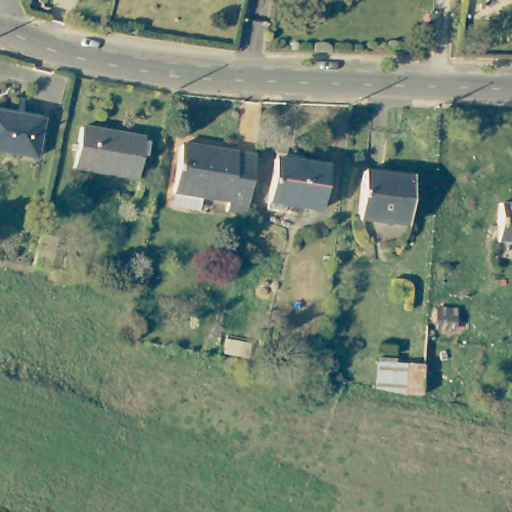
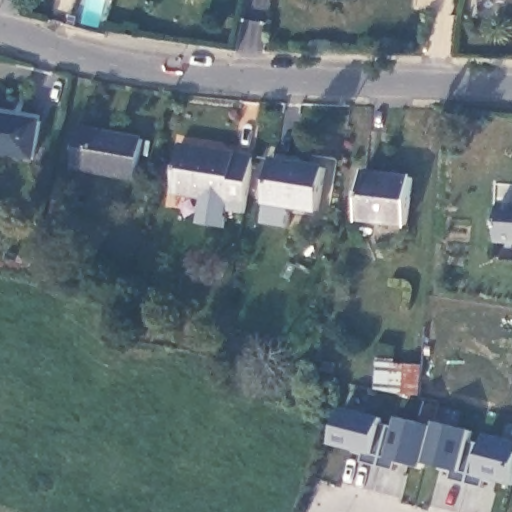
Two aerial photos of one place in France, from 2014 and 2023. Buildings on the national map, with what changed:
unchanged [(508,1),(503,5),(479,1),(479,0),(512,0),(512,2),(508,1)]
unchanged [(31,157),(0,150),(0,110),(39,119),(31,157)]
unchanged [(141,138),(134,179),(74,168),(81,126),(141,138)]
unchanged [(245,213),(225,211),(226,203),(171,195),(179,147),(252,160),(245,213)]
unchanged [(270,202),(277,156),(328,164),(320,209),(270,202)]
unchanged [(364,173),(413,178),(407,224),(358,218),(364,173)]
unchanged [(512,200),(512,240),(496,240),(498,200),(512,200)]
unchanged [(40,277),(46,247),(64,250),(62,269),(86,273),(85,287),(40,277)]
unchanged [(231,349),(255,353),(252,370),(229,366),(231,349)]
unchanged [(424,369),(425,403),(376,393),(378,362),(424,369)]
demolished [(432,413),(433,381),(450,384),(446,416),(432,413)]
new [(342,407),(381,417),(380,423),(394,428),(397,417),(434,428),(435,422),(471,430),(468,439),(483,442),(485,433),(512,441),(512,476),(510,484),(484,479),(481,487),(450,479),(455,469),(424,463),(422,467),(397,460),(391,469),(361,461),(363,453),(331,443),(342,407)]

